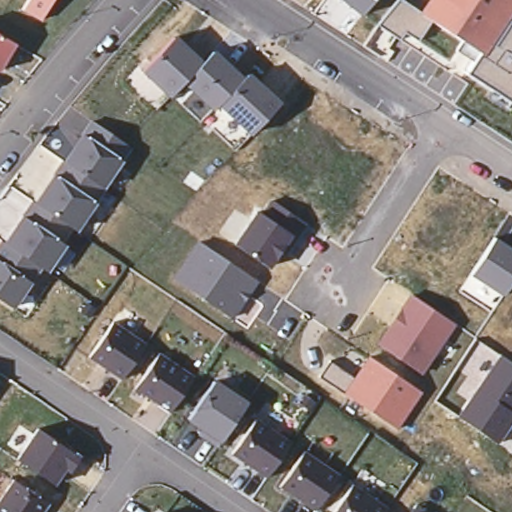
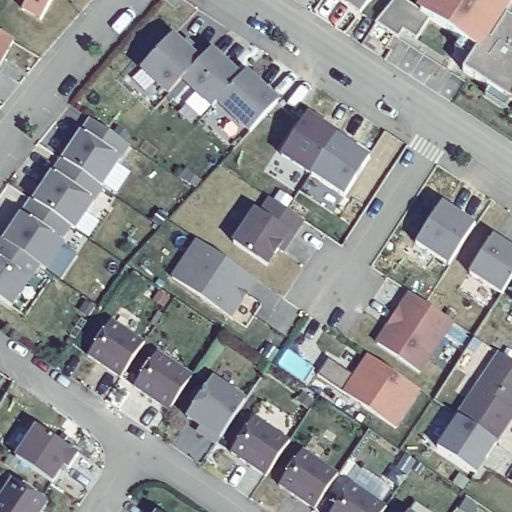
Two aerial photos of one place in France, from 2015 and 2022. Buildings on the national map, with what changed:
unchanged [(41,18),(23,10),(28,0),(51,0),(41,18)]
unchanged [(362,15),(342,0),(372,0),(362,15)]
unchanged [(397,0),(401,0),(417,11),(424,0),(512,0),(512,10),(505,20),(512,23),(512,107),(464,75),(477,54),(430,21),(416,41),(403,33),(398,40),(377,26),(397,0)]
unchanged [(249,135),(217,106),(210,113),(182,84),(167,99),(141,72),(175,35),(204,61),(214,51),(243,77),(248,73),(280,104),(249,135)]
unchanged [(0,67),(0,36),(14,45),(0,67)]
new [(308,115),(338,135),(337,138),(371,159),(346,197),(283,156),(308,115)]
unchanged [(30,201),(33,202),(60,160),(62,162),(80,134),(90,120),(129,147),(120,159),(45,273),(40,270),(14,309),(0,300),(0,241),(2,243),(30,201)]
unchanged [(307,222),(288,250),(285,247),(268,270),(230,243),(255,208),(258,211),(270,197),(307,222)]
new [(416,243),(442,203),(475,226),(449,267),(416,243)]
unchanged [(512,248),(512,282),(502,298),(467,276),(493,236),(512,248)]
unchanged [(258,281),(232,321),(168,280),(195,239),(258,281)]
unchanged [(456,323),(422,375),(375,345),(408,293),(456,323)]
unchanged [(114,322),(145,343),(122,380),(90,359),(114,322)]
unchanged [(512,360),(512,425),(499,446),(455,418),(498,351),(512,360)]
unchanged [(160,353),(192,375),(169,412),(135,389),(160,353)]
unchanged [(422,392),(397,430),(317,376),(329,360),(353,376),(368,355),(422,392)]
unchanged [(247,402),(216,446),(197,435),(200,428),(187,418),(213,380),(247,402)]
unchanged [(257,418),(290,441),(267,478),(232,454),(257,418)]
new [(497,444),(477,476),(437,445),(455,418),(497,444)]
unchanged [(36,428),(78,456),(70,471),(62,469),(54,484),(16,459),(36,428)]
unchanged [(307,451),(338,472),(315,510),(281,489),(307,451)]
unchanged [(47,504),(42,512),(0,512),(0,499),(13,480),(47,504)]
unchanged [(383,512),(332,512),(352,483),(388,505),(383,512)]
unchanged [(428,512),(408,512),(415,504),(428,512)]

